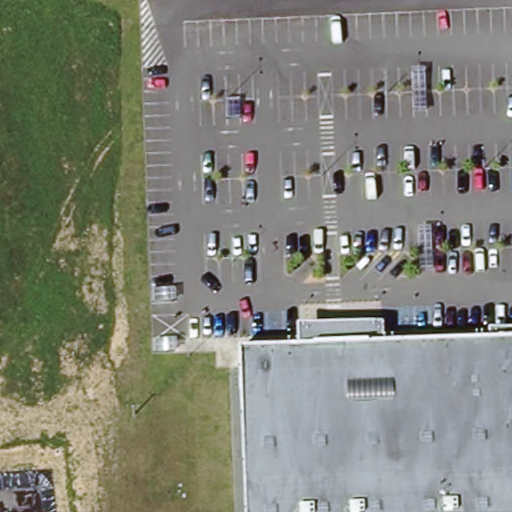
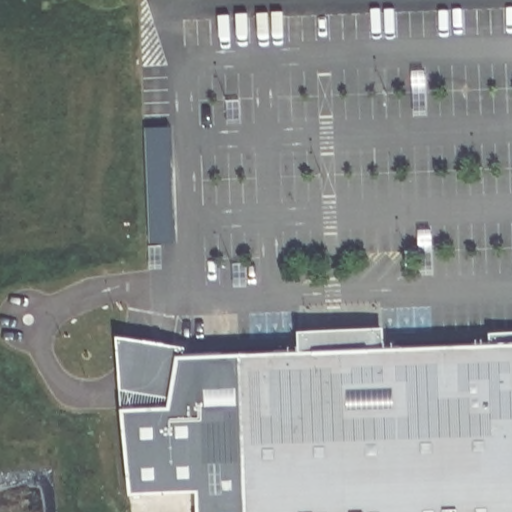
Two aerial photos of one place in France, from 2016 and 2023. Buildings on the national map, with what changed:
unchanged [(300,347),(299,326),(385,324),(387,344),(491,340),(490,328),(512,328),(512,512),(245,512),(238,350),(300,347)]
new [(199,512),(199,487),(129,491),(121,408),(116,332),(184,345),(182,352),(238,350),(245,512),(199,512)]

